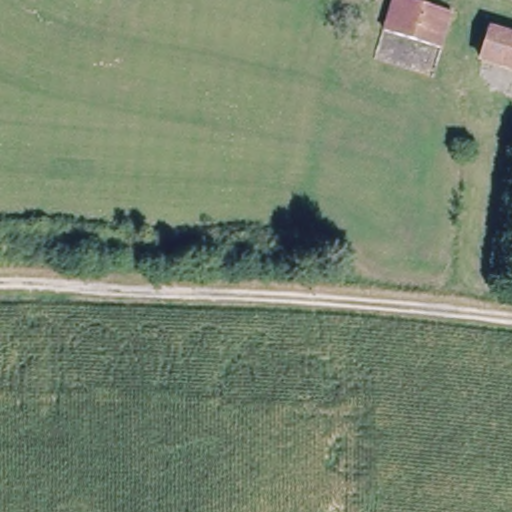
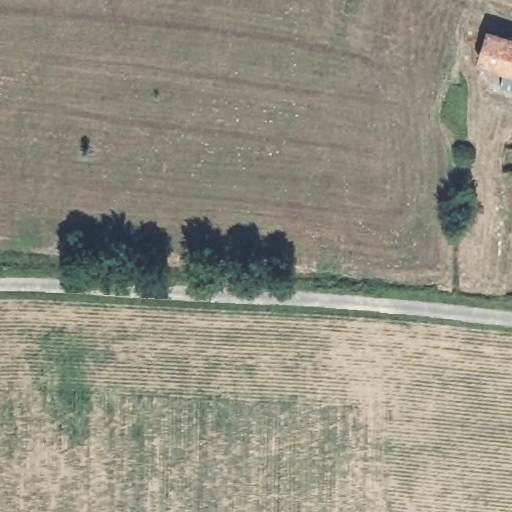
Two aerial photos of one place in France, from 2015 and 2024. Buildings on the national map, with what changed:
demolished [(442,47),(380,29),(390,0),(414,0),(452,11),(442,47)]
unchanged [(477,60),(488,24),(512,31),(512,71),(477,60)]

